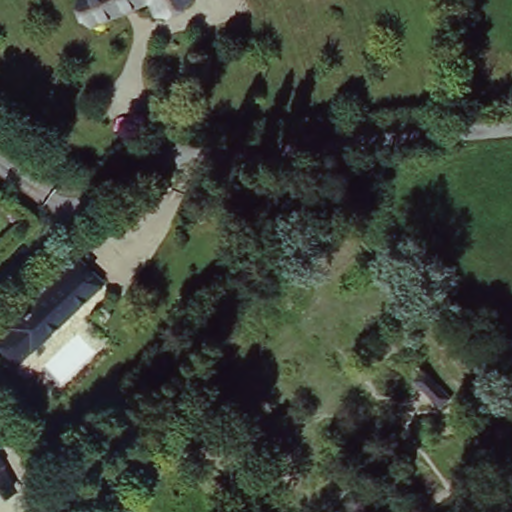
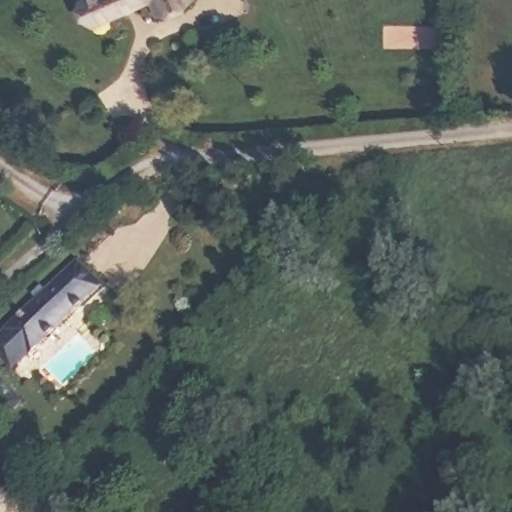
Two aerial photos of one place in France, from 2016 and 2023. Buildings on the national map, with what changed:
unchanged [(84,0),(138,0),(92,20),(84,0)]
unchanged [(155,0),(177,0),(158,7),(155,0)]
unchanged [(31,345),(28,347),(27,347),(10,363),(0,353),(0,332),(7,325),(38,296),(34,292),(42,283),(47,288),(77,260),(99,282),(73,305),(31,345)]
unchanged [(447,401),(439,408),(417,384),(425,376),(447,401)]
unchanged [(0,488),(0,471),(7,482),(0,488)]

